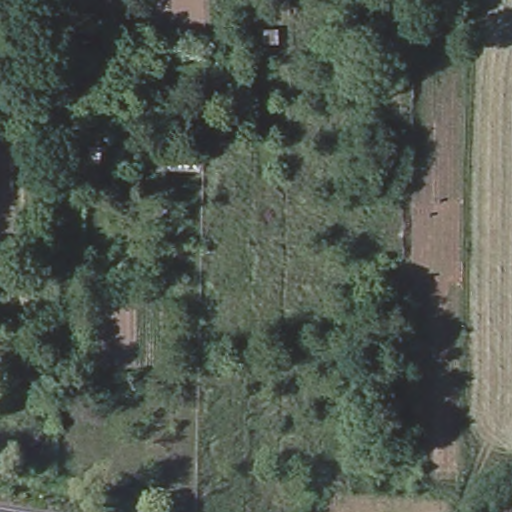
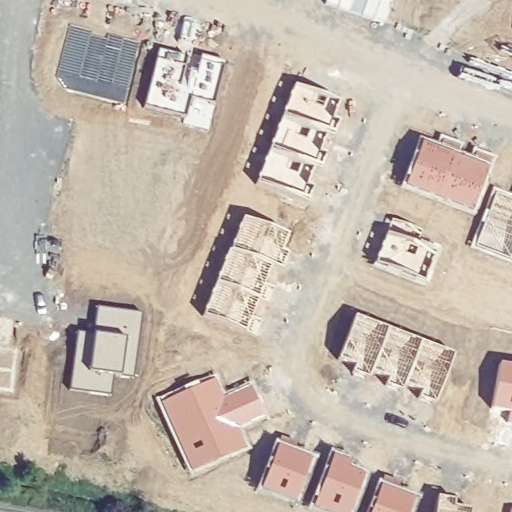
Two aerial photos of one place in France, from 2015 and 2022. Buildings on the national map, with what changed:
new [(91,31),(89,35),(106,40),(108,35),(139,42),(124,104),(68,90),(57,75),(70,25),(91,31)]
new [(187,53),(185,67),(200,71),(203,54),(222,59),(214,100),(216,101),(209,130),(183,124),(184,115),(145,105),(160,47),(187,53)]
new [(341,99),(334,118),(339,120),(336,133),(329,130),(321,149),(328,152),(324,168),(316,165),(308,185),(313,186),(309,197),(259,179),(298,83),(341,99)]
new [(441,144),(443,137),(462,143),(460,151),(473,157),(476,149),(494,157),(475,215),(404,187),(423,137),(441,144)]
new [(498,190),(512,196),(512,260),(477,246),(498,190)]
new [(248,214),(291,230),(283,249),(288,251),(283,265),(275,263),(266,283),(275,287),(269,303),(259,298),(252,316),(261,320),(256,334),(206,312),(248,214)]
new [(422,230),(419,239),(439,246),(428,282),(377,259),(393,219),(422,230)]
new [(143,312),(134,375),(113,372),(112,393),(71,389),(78,331),(96,334),(98,306),(143,312)]
new [(457,353),(437,401),(422,396),(424,389),(406,383),(404,389),(389,383),(392,376),(374,370),(371,376),(356,371),(357,365),(340,359),(359,314),(457,353)]
new [(13,391),(0,390),(0,349),(16,351),(13,391)]
new [(512,364),(512,409),(497,405),(504,362),(512,364)]
new [(216,379),(223,398),(252,387),(261,413),(236,425),(246,447),(192,468),(163,401),(216,379)]
new [(511,422),(512,409),(512,422),(511,422)]
new [(311,457),(296,498),(264,487),(279,446),(311,457)]
new [(348,465),(364,472),(351,512),(338,512),(318,504),(336,454),(351,459),(348,465)]
new [(409,512),(374,512),(384,486),(414,497),(409,512)]
new [(455,502),(474,506),(473,512),(437,512),(440,494),(456,496),(455,502)]
new [(512,510),(512,512),(511,512),(512,510)]

